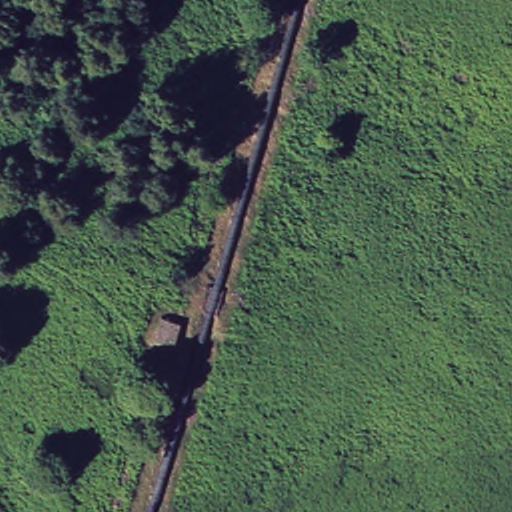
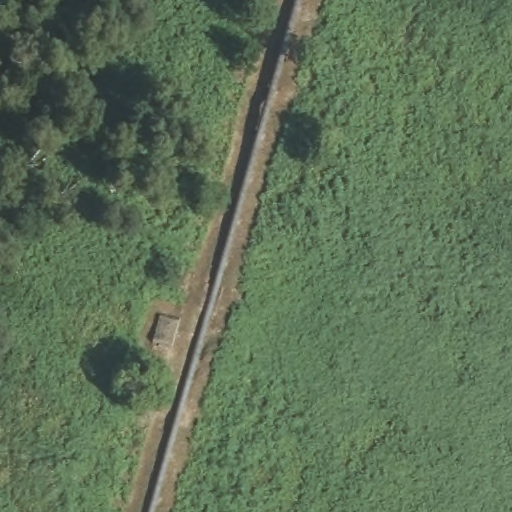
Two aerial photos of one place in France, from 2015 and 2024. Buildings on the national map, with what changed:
[]

